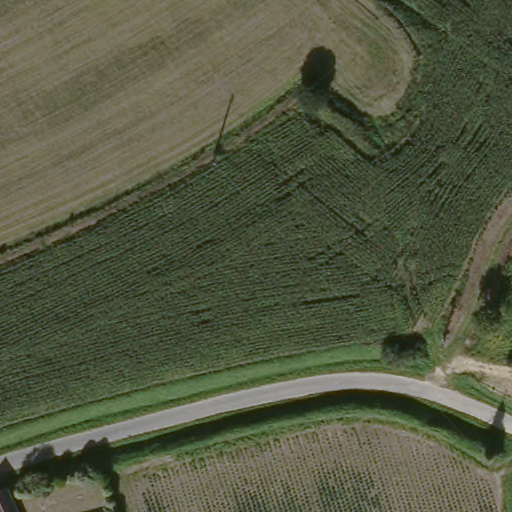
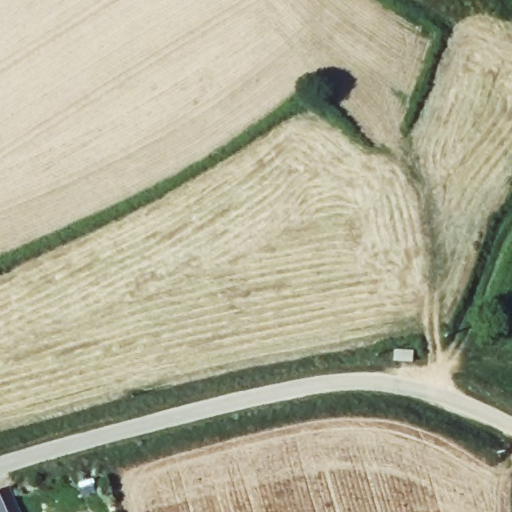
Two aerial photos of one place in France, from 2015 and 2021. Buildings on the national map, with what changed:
unchanged [(6,496),(13,512),(0,512),(0,498),(6,496)]

